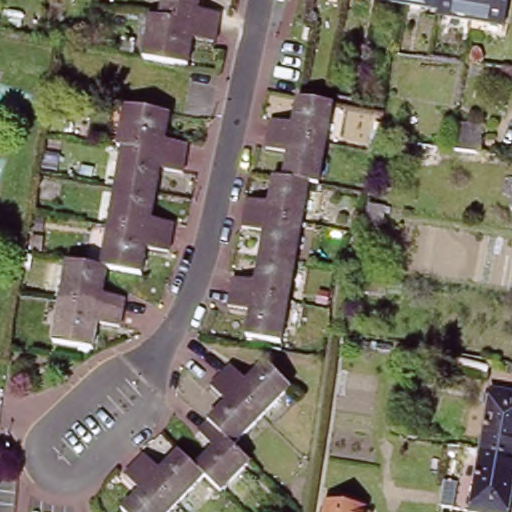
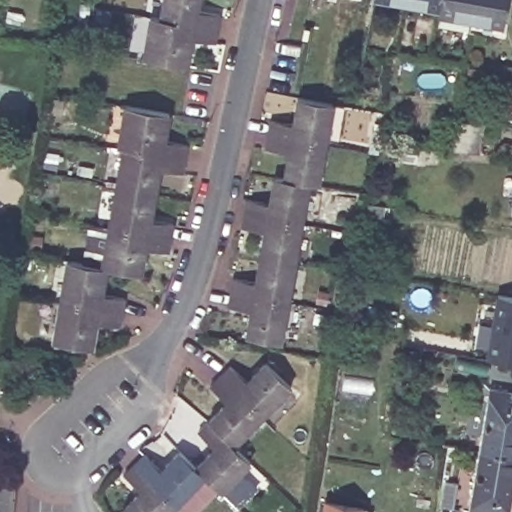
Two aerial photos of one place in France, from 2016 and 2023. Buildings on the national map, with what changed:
unchanged [(197,11),(220,15),(217,29),(159,20),(162,0),(199,0),(197,11)]
unchanged [(410,0),(443,0),(442,5),(410,0)]
unchanged [(475,17),(442,11),(442,5),(443,0),(478,0),(475,17)]
unchanged [(507,22),(475,17),(478,0),(511,0),(507,22)]
unchanged [(215,45),(191,41),(187,70),(144,61),(150,19),(159,20),(217,29),(215,45)]
unchanged [(272,115),(293,119),(297,95),(332,101),(325,140),(270,130),(272,115)]
unchanged [(168,117),(163,142),(186,146),(184,160),(120,150),(115,149),(122,110),(168,117)]
unchanged [(484,128),(482,140),(480,155),(452,151),(456,125),(471,126),(484,128)]
unchanged [(288,150),(267,146),(270,130),(325,140),(318,182),(308,181),(283,176),(288,150)]
unchanged [(181,175),(159,171),(154,194),(114,187),(120,150),(184,160),(181,175)]
unchanged [(308,181),(302,219),(244,209),(247,194),(270,199),(274,175),(283,176),(308,181)]
unchanged [(114,187),(154,194),(150,220),(172,224),(170,238),(107,227),(114,187)]
unchanged [(512,198),(512,212),(510,211),(512,198)]
unchanged [(295,259),(260,254),(265,230),(240,226),(244,209),(302,219),(295,259)]
unchanged [(66,263),(99,270),(107,227),(170,238),(167,255),(144,251),(140,276),(106,271),(102,296),(124,301),(122,316),(59,305),(66,263)]
unchanged [(288,299),(230,290),(233,275),(255,278),(260,254),(295,259),(288,299)]
unchanged [(280,340),(246,335),(250,308),(227,305),(230,290),(288,299),(280,340)]
new [(487,357),(497,295),(512,298),(512,362),(487,357)]
unchanged [(122,316),(119,330),(96,326),(92,352),(52,345),(59,305),(122,316)]
unchanged [(230,365),(245,381),(264,363),(290,388),(260,416),(219,375),(230,365)]
unchanged [(260,416),(232,446),(206,422),(224,404),(207,387),(219,375),(260,416)]
unchanged [(490,386),(512,391),(512,456),(479,450),(490,386)]
unchanged [(247,463),(219,491),(202,475),(194,467),(214,448),(196,431),(206,422),(232,446),(247,463)]
unchanged [(510,512),(478,512),(467,510),(479,450),(512,456),(512,499),(510,512)]
unchanged [(143,454),(160,469),(177,451),(194,467),(202,475),(175,505),(133,464),(143,454)]
unchanged [(167,512),(120,512),(119,510),(137,491),(122,475),(133,464),(175,505),(167,512)]
unchanged [(356,512),(324,512),(325,506),(356,512)]

